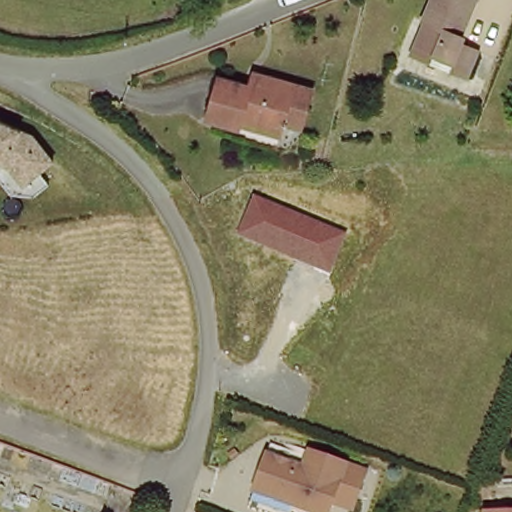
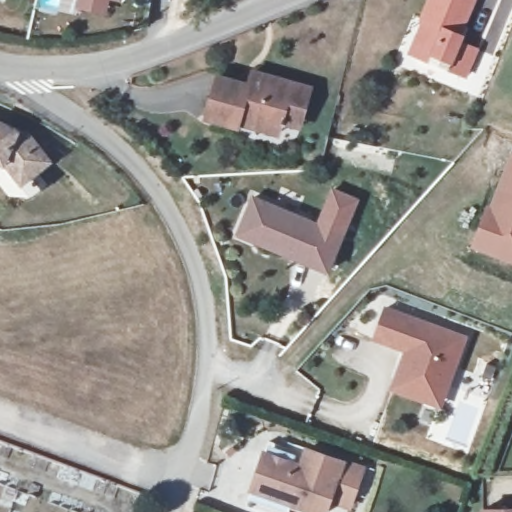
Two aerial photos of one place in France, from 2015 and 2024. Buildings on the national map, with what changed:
new [(75,9),(77,0),(109,0),(106,15),(75,9)]
new [(109,0),(122,0),(122,2),(109,0)]
unchanged [(428,0),(472,0),(457,39),(483,47),(473,74),(418,54),(409,50),(422,18),(428,0)]
unchanged [(246,130),(205,122),(217,77),(251,83),(255,69),(296,79),(315,82),(306,124),(289,121),(287,137),(246,130)]
unchanged [(56,162),(27,187),(10,168),(0,164),(0,124),(34,137),(56,162)]
new [(488,247),(475,242),(482,223),(489,204),(493,206),(512,156),(512,256),(488,247)]
unchanged [(253,194),(348,232),(330,276),(236,234),(253,194)]
new [(403,353),(373,343),(383,306),(469,337),(443,409),(389,392),(403,353)]
unchanged [(250,500),(256,483),(268,447),(272,436),(309,449),(311,444),(367,464),(354,501),(334,494),(329,509),(295,497),(290,512),(285,512),(250,500)]
unchanged [(512,503),(512,512),(490,512),(490,503),(512,503)]

